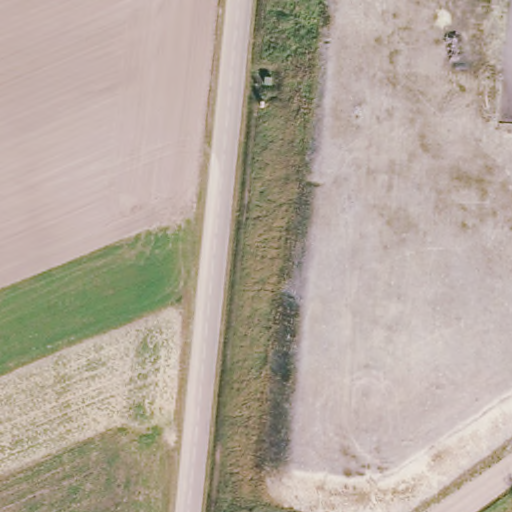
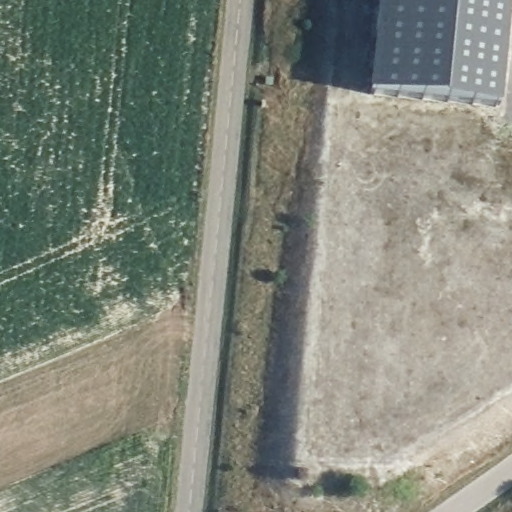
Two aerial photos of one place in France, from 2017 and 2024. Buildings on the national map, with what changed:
new [(387,59),(393,0),(483,0),(512,3),(512,73),(387,59)]
new [(483,0),(512,0),(512,3),(483,0)]
new [(387,59),(512,73),(512,109),(384,97),(387,59)]

